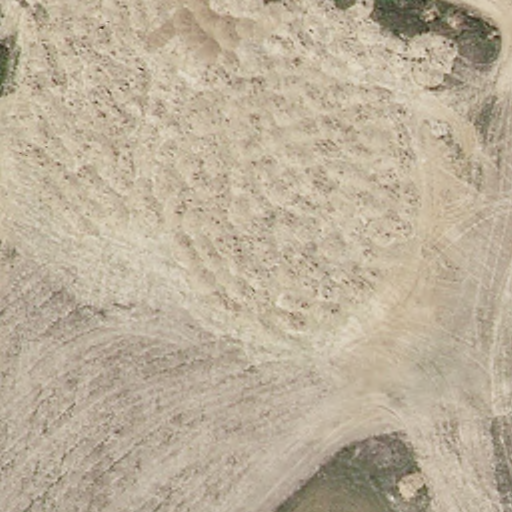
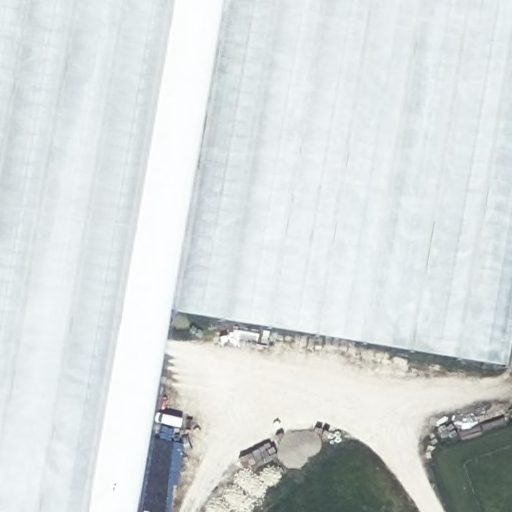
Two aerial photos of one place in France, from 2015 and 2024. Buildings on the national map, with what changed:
new [(167,311),(133,512),(0,512),(0,0),(512,0),(512,325),(505,366),(167,311)]

